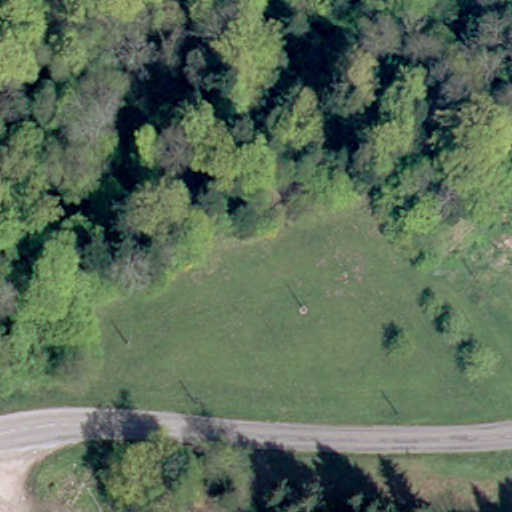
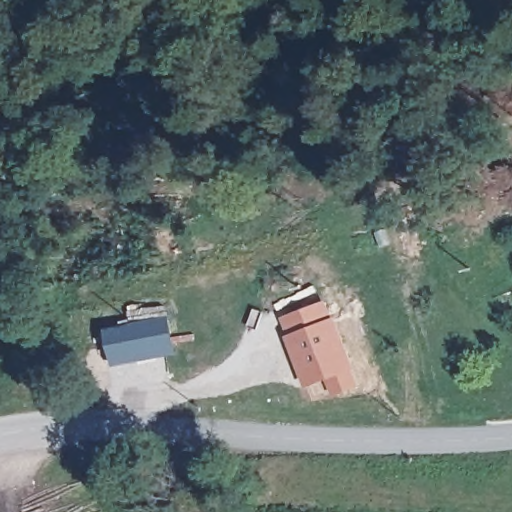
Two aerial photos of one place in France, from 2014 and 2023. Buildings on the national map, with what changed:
new [(291,313),(322,302),(329,323),(352,383),(332,391),(325,372),(307,378),(291,337),(298,334),(291,313)]
new [(167,321),(172,350),(132,358),(132,357),(113,361),(108,332),(127,328),(167,321)]

